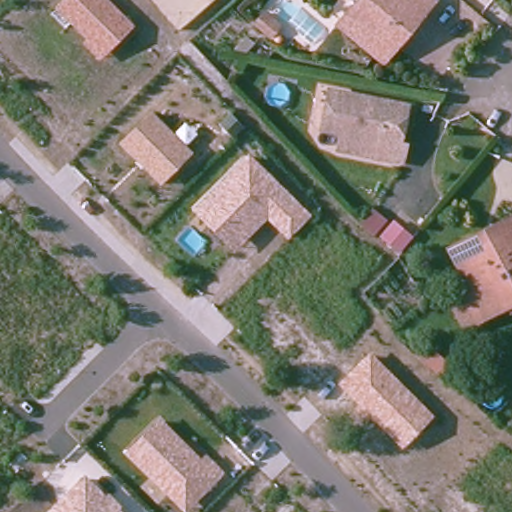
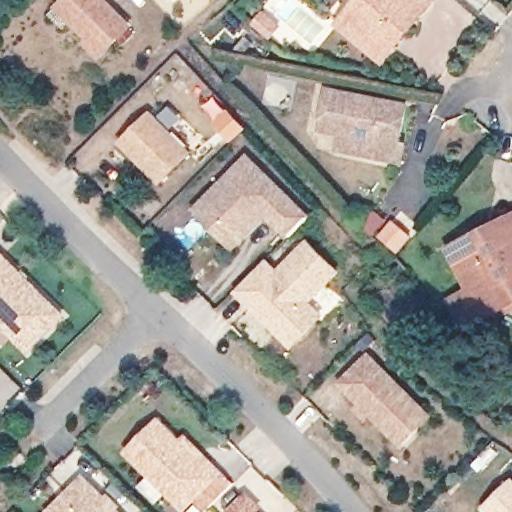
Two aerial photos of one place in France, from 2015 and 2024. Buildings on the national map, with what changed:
unchanged [(76,17),(70,24),(56,11),(63,4),(67,0),(111,0),(135,24),(114,45),(105,54),(91,41),(96,37),(76,17)]
unchanged [(382,66),(335,28),(358,0),(427,0),(431,3),(419,19),(393,52),(382,66)]
unchanged [(285,29),(267,13),(277,1),(295,16),(285,29)]
unchanged [(345,135),(328,131),(336,91),(415,107),(407,147),(412,148),(409,164),(379,157),(343,150),(345,135)]
unchanged [(245,102),(258,115),(247,125),(234,112),(245,102)]
unchanged [(125,140),(154,111),(193,150),(164,180),(148,163),(142,157),(125,140)]
unchanged [(191,209),(247,153),(312,216),(288,242),(265,222),(234,252),(191,209)]
unchanged [(469,322),(463,320),(453,301),(455,295),(471,287),(454,254),(451,249),(512,216),(512,298),(506,302),(469,322)]
unchanged [(414,220),(427,231),(412,248),(399,237),(414,220)]
new [(316,312),(291,338),(235,282),(262,256),(264,254),(276,266),(307,235),(336,264),(306,295),(320,308),(316,312)]
new [(26,342),(11,328),(0,316),(0,247),(61,307),(26,342)]
unchanged [(439,338),(467,361),(459,371),(442,356),(431,347),(439,338)]
unchanged [(337,383),(369,351),(435,415),(402,448),(337,383)]
unchanged [(131,455),(161,424),(203,466),(207,462),(222,476),(197,502),(187,512),(174,498),(131,455)]
new [(512,477),(512,512),(493,512),(483,502),(510,475),(512,477)]
unchanged [(117,512),(57,512),(67,502),(86,482),(108,502),(117,512)]
new [(244,488),(256,500),(253,503),(261,512),(230,512),(225,507),(244,488)]

